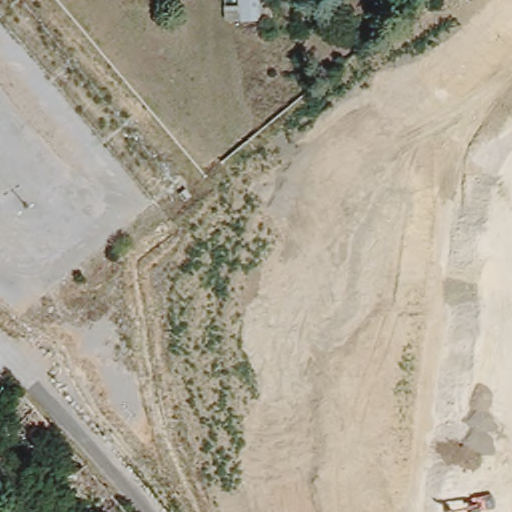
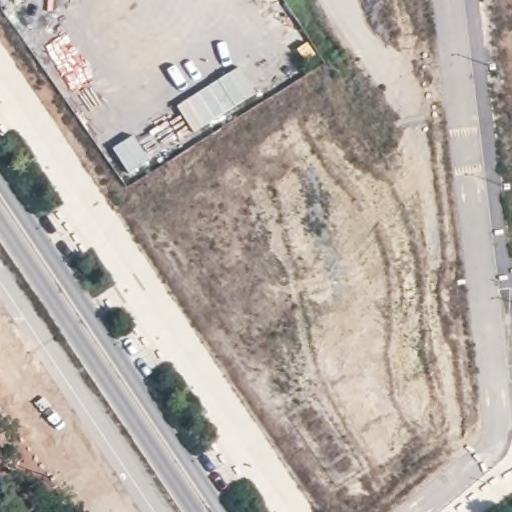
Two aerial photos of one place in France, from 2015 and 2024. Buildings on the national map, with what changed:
new [(257,92),(194,133),(178,106),(240,66),(257,92)]

